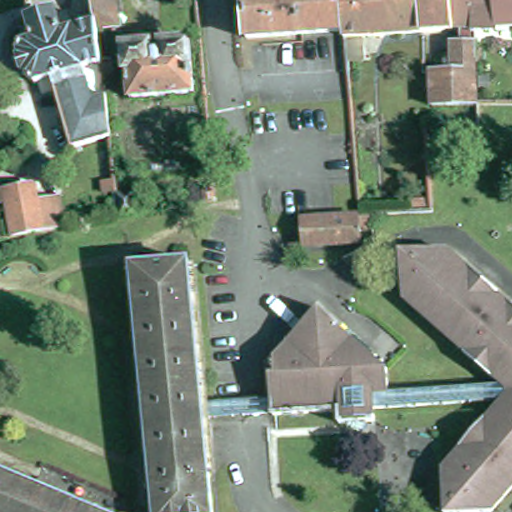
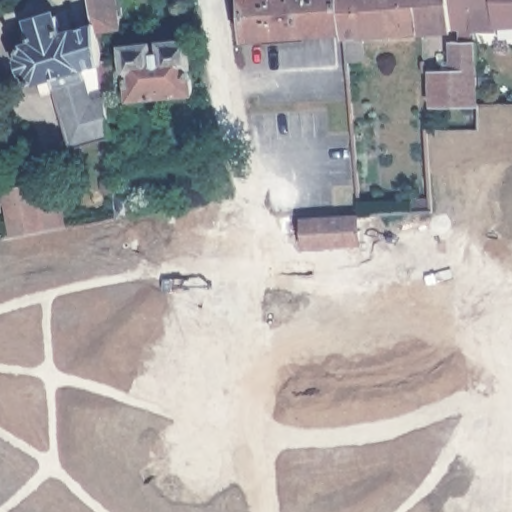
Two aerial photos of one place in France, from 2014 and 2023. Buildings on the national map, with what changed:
unchanged [(102,54),(99,30),(96,30),(95,30),(95,24),(92,0),(119,0),(122,27),(105,30),(108,55),(102,55),(102,54)]
unchanged [(252,33),(249,0),(350,0),(352,26),(252,33)]
unchanged [(425,13),(425,25),(352,30),(352,26),(350,0),(423,0),(425,13)]
unchanged [(425,13),(423,0),(456,0),(457,23),(425,25),(425,13)]
unchanged [(456,0),(512,0),(512,58),(484,60),(482,22),(457,23),(456,0)]
unchanged [(52,76),(51,76),(38,80),(35,81),(27,77),(18,48),(23,40),(19,29),(31,25),(30,22),(59,14),(64,31),(95,24),(95,30),(96,30),(99,30),(102,54),(102,55),(103,60),(112,60),(115,80),(105,81),(112,135),(72,147),(52,76)]
unchanged [(455,57),(455,35),(458,35),(457,23),(482,22),(484,60),(486,84),(483,85),(485,99),(435,99),(433,65),(448,65),(448,57),(455,57)]
unchanged [(190,41),(195,92),(132,97),(127,46),(190,41)]
unchanged [(104,192),(102,181),(117,180),(117,191),(104,192)]
unchanged [(0,192),(32,187),(33,197),(55,194),(60,226),(8,236),(0,192)]
unchanged [(118,197),(134,194),(136,213),(135,213),(120,216),(118,197)]
unchanged [(370,226),(355,226),(355,241),(302,244),(300,217),(355,212),(368,211),(370,226)]
demolished [(275,373),(274,357),(318,307),(385,366),(388,390),(503,383),(495,375),(490,376),(461,350),(462,349),(403,295),(401,250),(445,248),(466,267),(469,265),(512,304),(512,484),(487,512),(444,512),(441,470),(460,448),(457,446),(483,417),(486,419),(502,400),(373,407),(374,420),(365,420),(346,422),(339,422),(338,410),(273,415),(272,411),(272,396),(270,373),(275,373)]
demolished [(162,512),(137,265),(188,261),(202,400),(204,416),(213,512),(162,512)]
demolished [(0,512),(0,468),(108,512),(0,512)]

